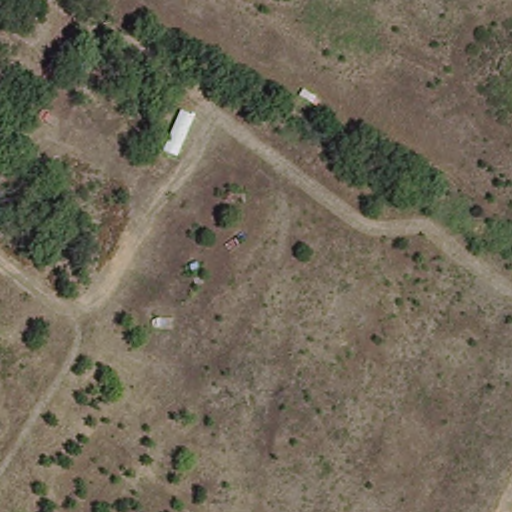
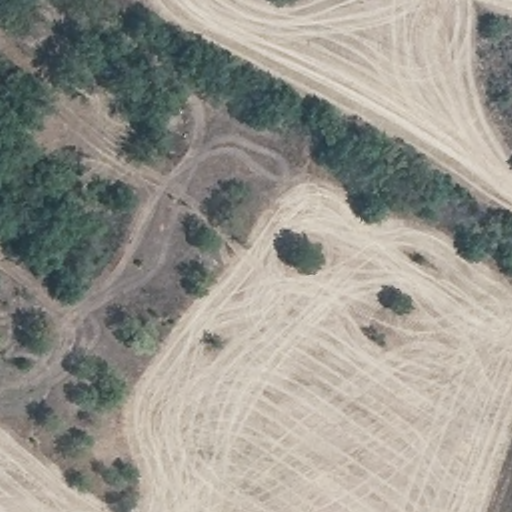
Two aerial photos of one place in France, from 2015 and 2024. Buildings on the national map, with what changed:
unchanged [(55,17),(38,44),(20,31),(37,5),(55,17)]

